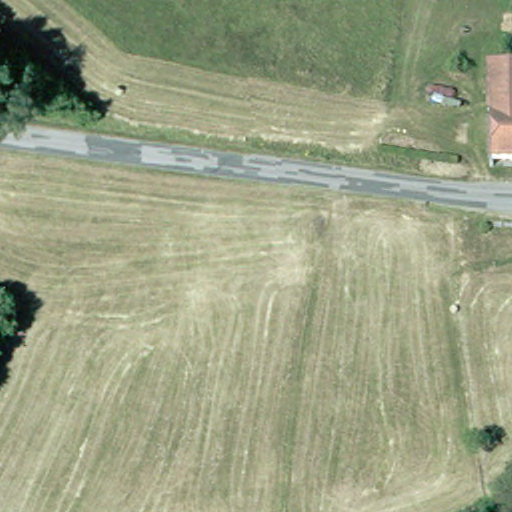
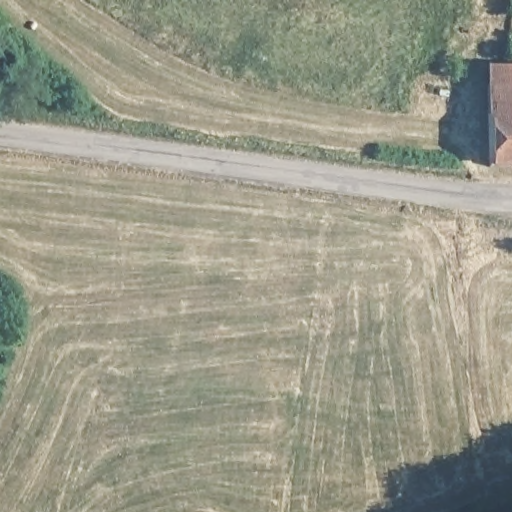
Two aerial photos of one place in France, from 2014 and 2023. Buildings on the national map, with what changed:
unchanged [(483,71),(483,64),(512,64),(512,162),(487,162),(483,71)]

